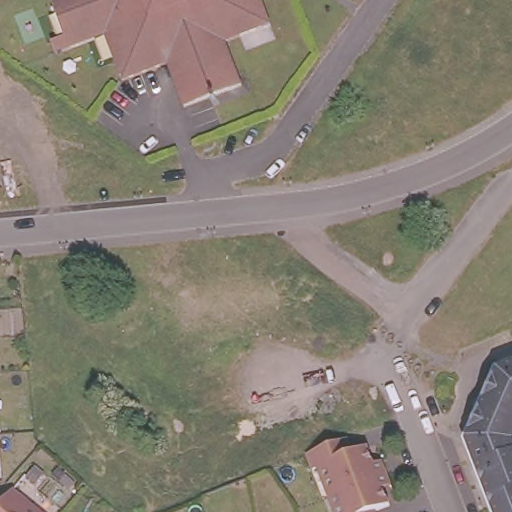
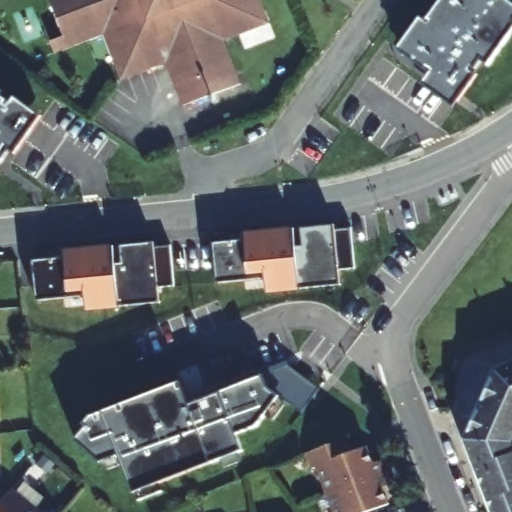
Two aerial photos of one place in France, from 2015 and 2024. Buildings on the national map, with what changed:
unchanged [(53,0),(264,0),(271,18),(226,35),(243,79),(184,101),(168,57),(122,75),(105,29),(65,44),(56,47),(53,35),(65,31),(53,0)]
new [(456,110),(426,88),(434,76),(402,56),(425,21),(429,26),(447,0),(506,0),(512,4),(512,31),(506,41),(456,110)]
new [(35,116),(0,162),(0,95),(35,116)]
new [(212,238),(244,236),(243,230),(335,219),(335,225),(350,225),(353,263),(338,267),(339,284),(266,287),(264,276),(216,277),(212,238)]
new [(33,258),(65,253),(65,249),(153,240),(153,245),(168,244),(171,281),(158,283),(160,301),(86,308),(84,296),(37,299),(33,258)]
unchanged [(465,434),(497,366),(512,360),(512,512),(494,512),(464,435),(465,434)]
new [(119,451),(101,460),(74,439),(85,425),(83,421),(91,413),(102,410),(181,381),(188,402),(263,375),(278,394),(258,424),(235,433),(240,449),(134,490),(119,451)]
unchanged [(351,451),(366,446),(374,467),(383,464),(386,471),(388,478),(380,481),(388,503),(374,508),(375,512),(342,512),(334,491),(322,461),(312,465),(310,465),(305,450),(330,441),(345,436),(351,451)]
unchanged [(24,512),(0,512),(0,503),(5,497),(24,512)]

